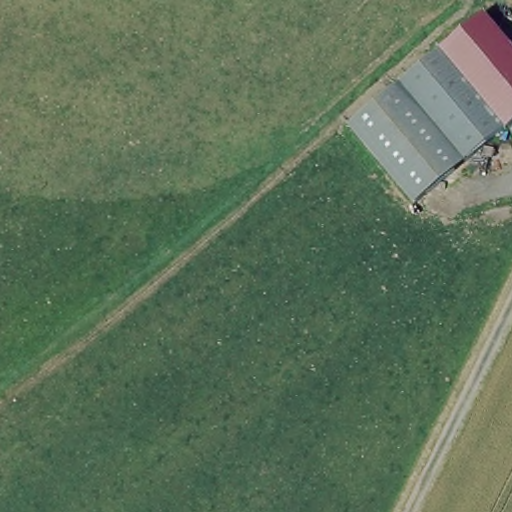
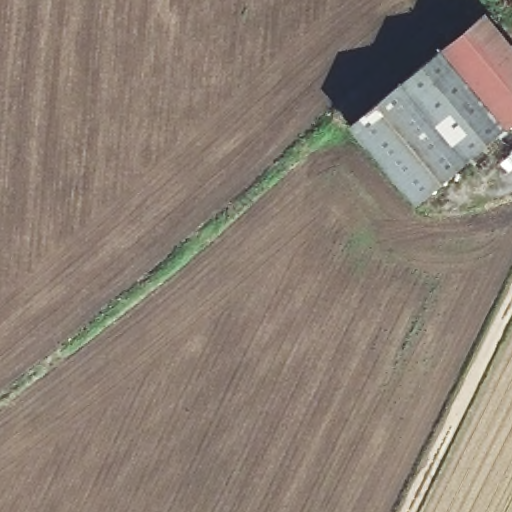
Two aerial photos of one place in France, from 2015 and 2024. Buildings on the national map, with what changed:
unchanged [(481,14),(512,53),(512,117),(408,200),(345,124),(481,14)]

